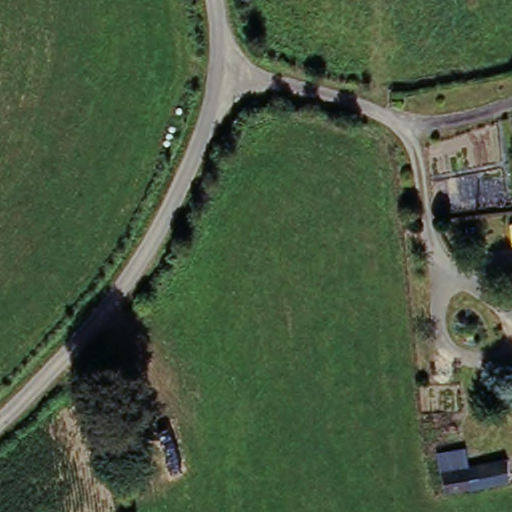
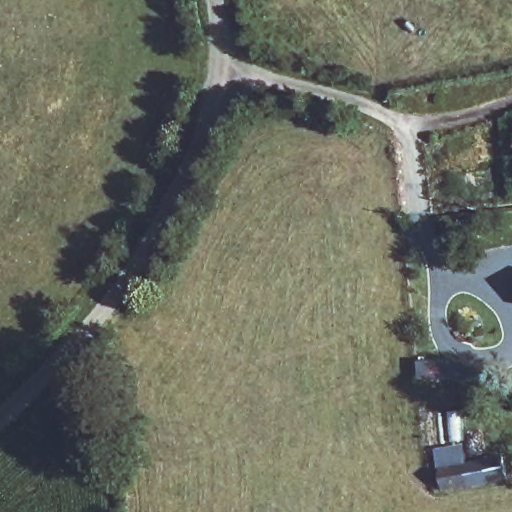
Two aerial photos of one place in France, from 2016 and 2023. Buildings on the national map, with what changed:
unchanged [(442,498),(437,450),(464,443),(475,494),(442,498)]

